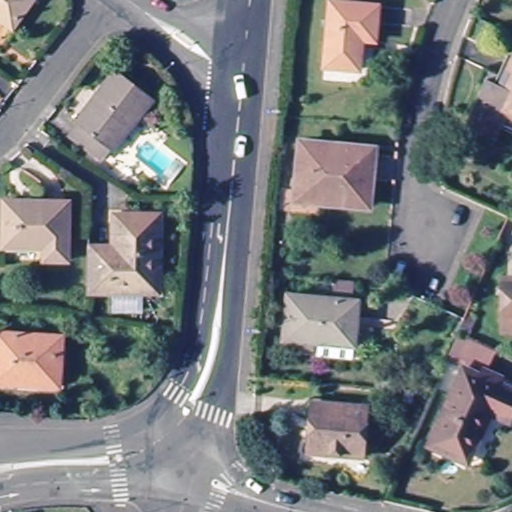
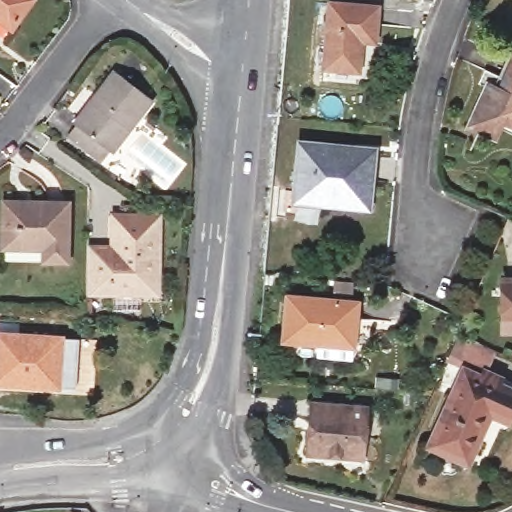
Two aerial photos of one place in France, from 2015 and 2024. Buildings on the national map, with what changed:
unchanged [(0,17),(0,0),(35,0),(14,27),(0,17)]
unchanged [(375,42),(361,41),(358,72),(325,70),(329,5),(377,8),(375,42)]
unchanged [(492,138),(488,145),(463,134),(482,93),(478,91),(485,78),(502,86),(512,69),(512,148),(492,138)]
unchanged [(78,125),(75,122),(115,70),(152,97),(140,112),(134,107),(129,114),(132,116),(101,158),(87,147),(71,135),(78,125)]
unchanged [(295,193),(299,147),(371,153),(365,208),(321,204),(294,201),(295,193)]
unchanged [(65,261),(43,261),(43,249),(3,248),(4,205),(66,206),(65,261)]
unchanged [(146,298),(85,297),(85,259),(85,249),(111,251),(112,220),(157,221),(156,278),(156,298),(146,298)]
unchanged [(352,351),(282,344),(286,301),(355,307),(352,351)]
unchanged [(457,319),(464,322),(459,332),(452,329),(457,319)]
unchanged [(0,383),(0,334),(61,337),(59,386),(0,383)]
unchanged [(432,436),(451,394),(476,342),(499,353),(489,375),(505,382),(502,389),(512,394),(512,418),(509,425),(503,422),(490,416),(472,455),(466,468),(427,448),(432,436)]
unchanged [(364,461),(309,455),(314,405),(315,400),(327,401),(327,406),(369,411),(364,461)]

